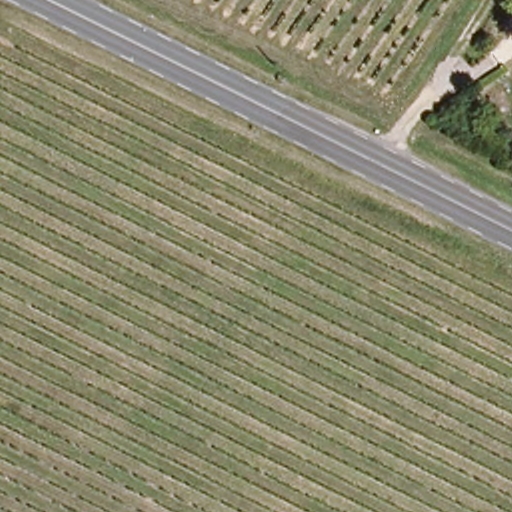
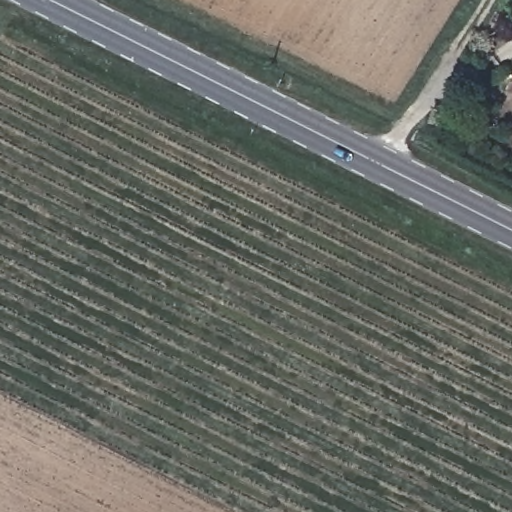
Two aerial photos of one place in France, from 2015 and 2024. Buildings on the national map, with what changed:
[]

